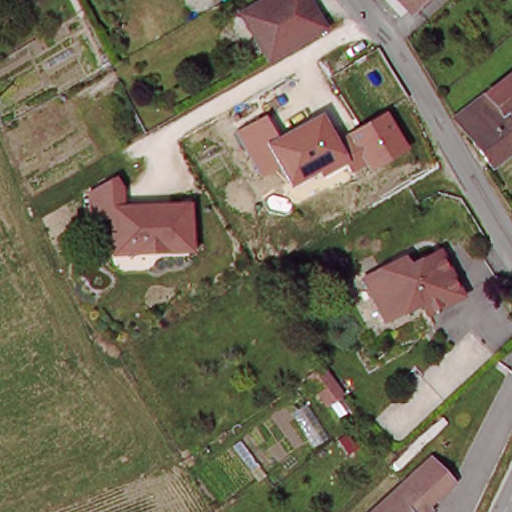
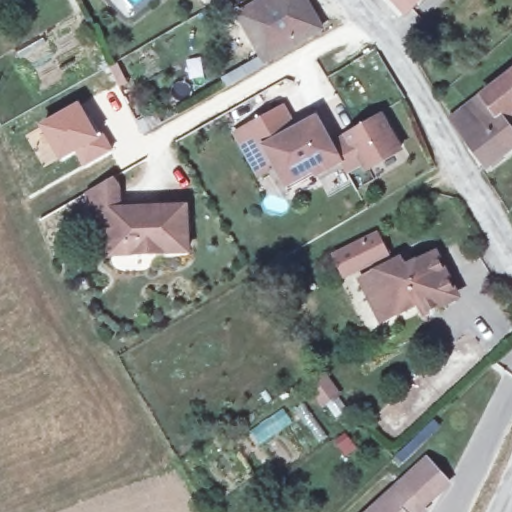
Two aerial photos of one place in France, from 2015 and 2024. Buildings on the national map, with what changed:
unchanged [(323,35),(267,68),(240,22),(240,21),(275,3),(279,0),(303,0),(323,35)]
unchanged [(405,7),(405,6),(399,0),(411,0),(405,7)]
unchanged [(512,129),(512,158),(488,178),(458,130),(512,84),(512,117),(507,122),(512,129)]
new [(79,100),(100,135),(104,133),(114,149),(83,167),(75,153),(58,162),(37,126),(79,100)]
unchanged [(260,118),(272,139),(317,114),(330,139),(381,114),(402,152),(364,173),(360,168),(347,175),(342,166),(317,180),(313,175),(286,190),(275,170),(256,179),(232,132),(260,118)]
unchanged [(122,205),(185,202),(187,252),(110,254),(107,217),(89,218),(87,189),(120,174),(122,205)]
unchanged [(452,298),(421,314),(415,304),(380,321),(362,281),(397,263),(401,273),(432,258),(452,298)]
unchanged [(447,493),(426,512),(421,512),(399,488),(422,466),(447,493)]
unchanged [(371,512),(399,488),(421,512),(371,512)]

